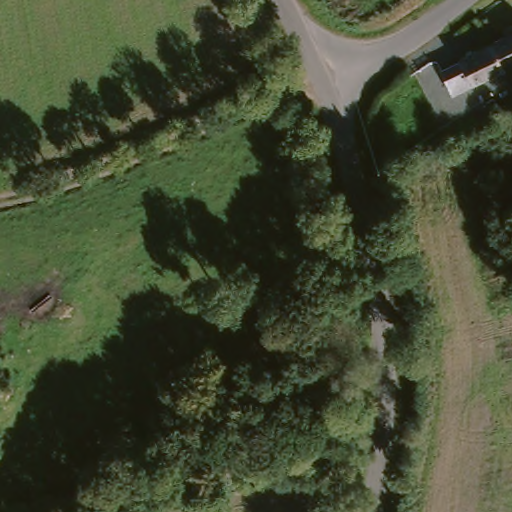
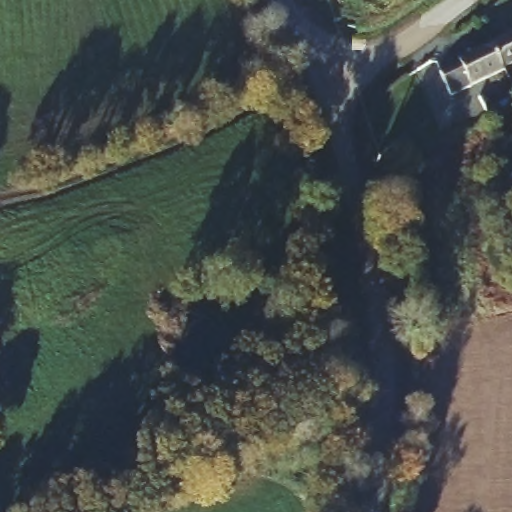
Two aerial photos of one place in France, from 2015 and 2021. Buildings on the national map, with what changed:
unchanged [(512,32),(512,64),(501,68),(490,42),(512,32)]
unchanged [(501,68),(503,71),(448,97),(438,73),(457,65),(457,57),(490,42),(501,68)]

